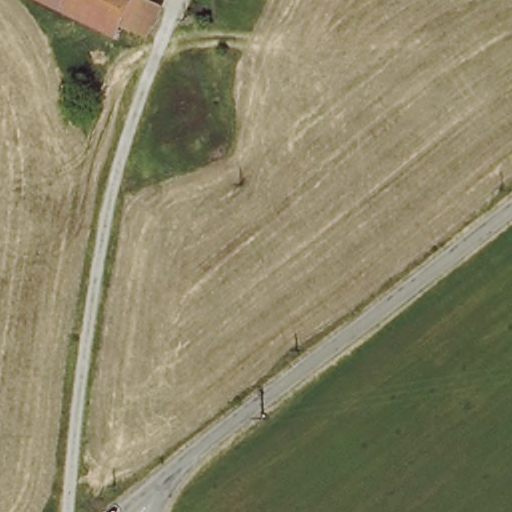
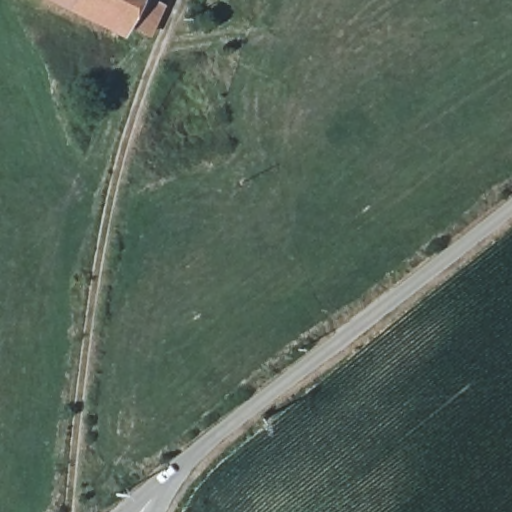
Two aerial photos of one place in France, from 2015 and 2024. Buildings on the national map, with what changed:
unchanged [(53,0),(71,0),(68,8),(53,0)]
unchanged [(148,0),(168,10),(155,36),(131,25),(126,36),(68,8),(71,0),(148,0)]

